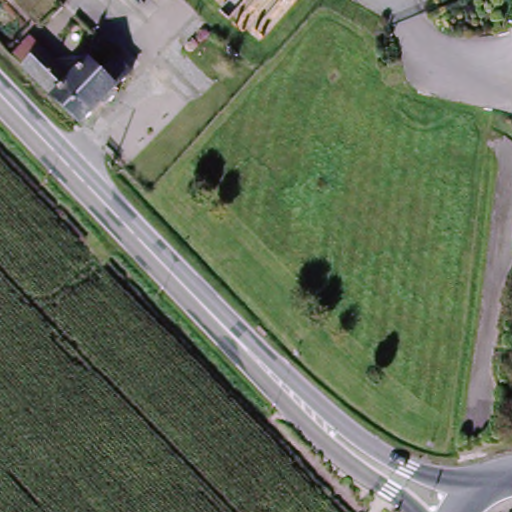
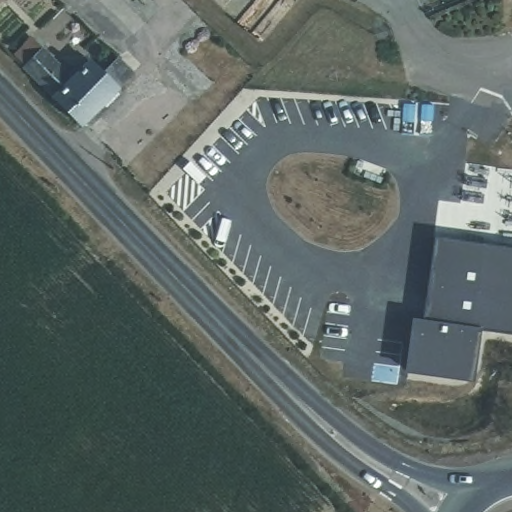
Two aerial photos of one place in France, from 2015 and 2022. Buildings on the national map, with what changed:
unchanged [(87,64),(104,81),(118,66),(132,80),(115,97),(102,110),(81,130),(24,72),(27,69),(17,59),(33,42),(43,53),(70,80),(87,64)]
new [(512,248),(512,335),(481,330),(472,383),(405,373),(412,319),(422,320),(434,237),(512,248)]

